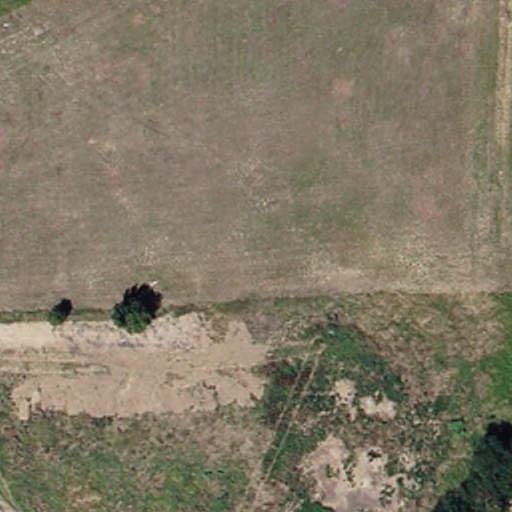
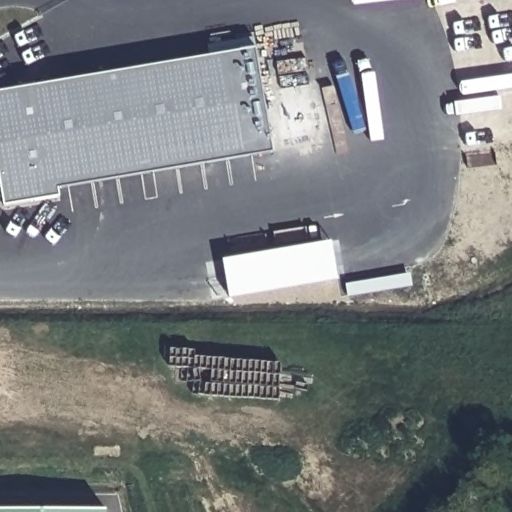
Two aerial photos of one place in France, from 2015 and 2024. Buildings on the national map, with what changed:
new [(210,58),(208,45),(254,37),(272,151),(57,188),(58,194),(6,204),(0,171),(0,93),(210,58)]
new [(338,279),(230,298),(224,259),(332,240),(338,279)]
new [(106,512),(0,512),(0,508),(106,509),(106,512)]

